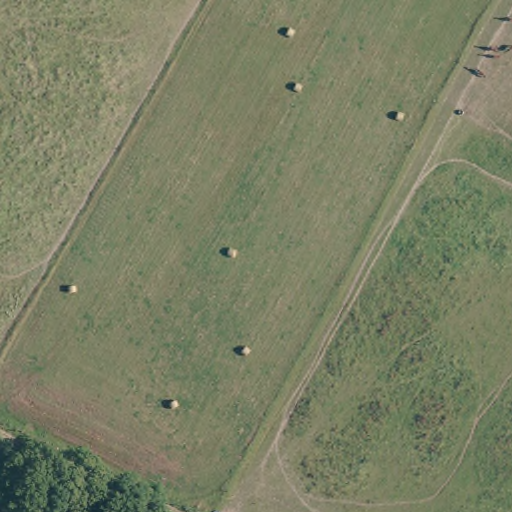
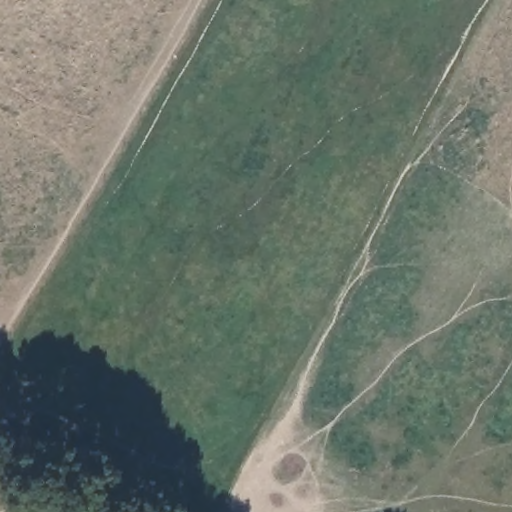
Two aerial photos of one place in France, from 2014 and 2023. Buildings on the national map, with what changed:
[]

